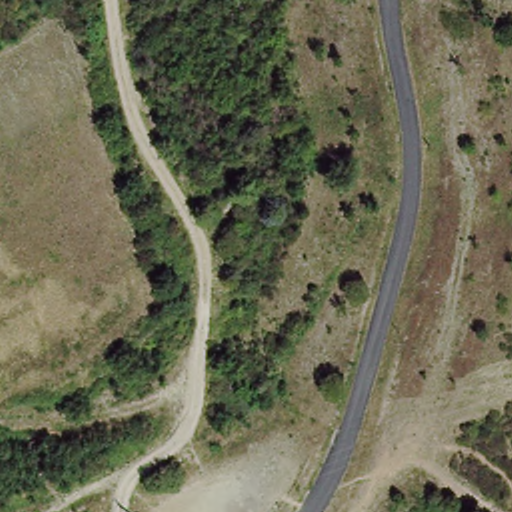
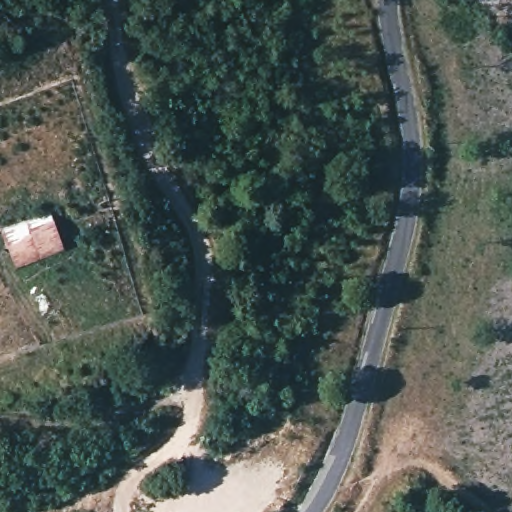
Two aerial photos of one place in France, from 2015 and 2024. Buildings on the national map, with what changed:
new [(52,215),(63,244),(14,263),(3,234),(52,215)]

